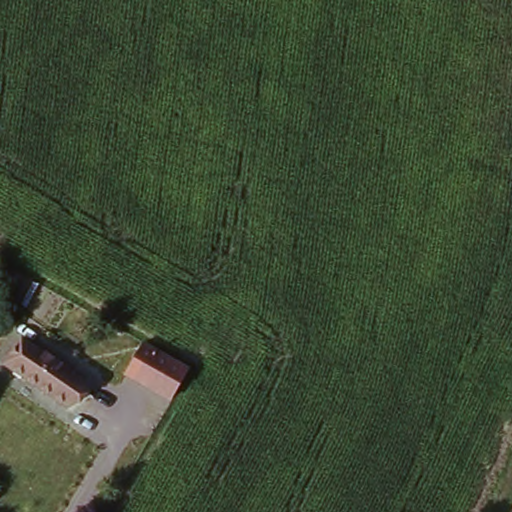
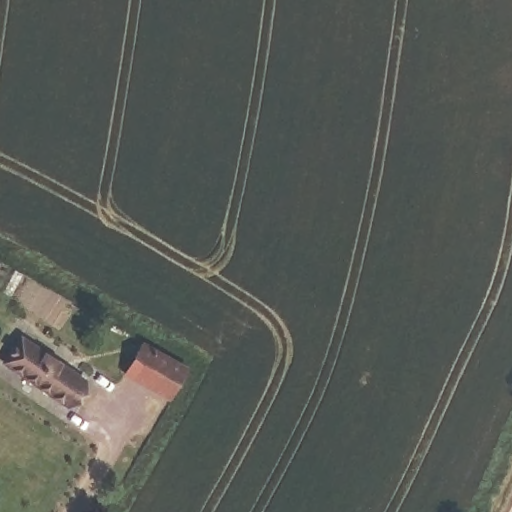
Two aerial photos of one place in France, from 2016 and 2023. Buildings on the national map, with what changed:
unchanged [(92,378),(77,406),(7,366),(24,338),(92,378)]
unchanged [(188,371),(168,402),(127,377),(144,346),(188,371)]

